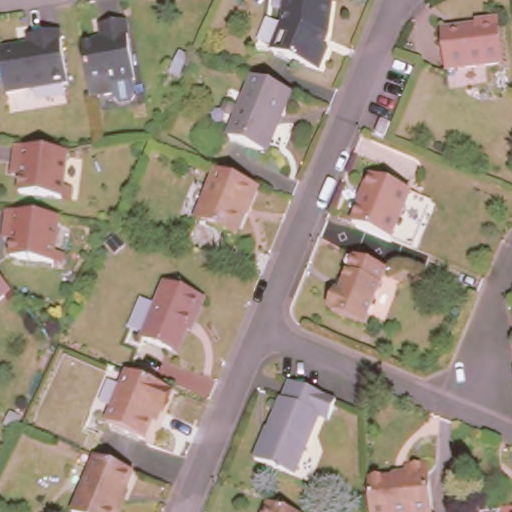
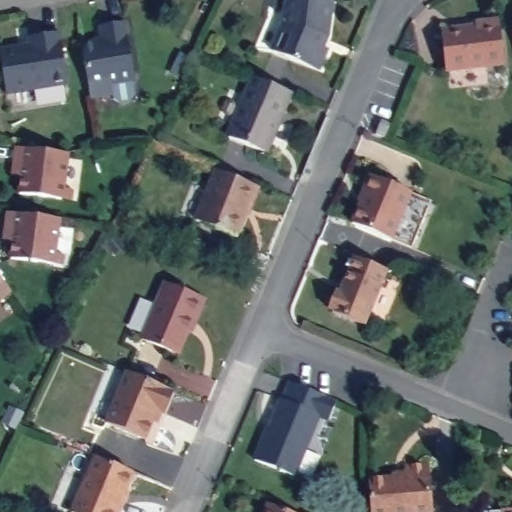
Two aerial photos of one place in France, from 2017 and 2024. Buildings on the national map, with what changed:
unchanged [(328,43),(331,44),(323,65),(277,46),(289,18),(290,0),(335,0),(331,31),(328,43)]
unchanged [(133,75),(110,79),(111,90),(90,93),(87,76),(81,39),(103,36),(100,21),(125,18),(133,75)]
unchanged [(483,26),(483,20),(502,19),(508,64),(453,70),(449,30),(483,26)]
unchanged [(5,89),(0,55),(0,46),(29,41),(28,33),(59,28),(68,79),(5,89)]
unchanged [(174,54),(185,59),(179,72),(168,67),(174,54)]
unchanged [(266,147),(229,131),(254,72),(291,86),(266,147)]
unchanged [(379,120),(389,124),(384,138),(373,134),(379,120)]
unchanged [(23,194),(25,178),(17,176),(19,164),(21,148),(73,154),(66,200),(23,194)]
unchanged [(236,237),(196,219),(218,169),(257,185),(236,237)]
unchanged [(379,174),(417,190),(397,239),(359,223),(379,174)]
unchanged [(7,238),(0,236),(0,227),(0,224),(3,208),(54,214),(48,260),(4,254),(7,238)]
unchanged [(393,270),(371,325),(339,312),(340,309),(335,308),(341,292),(347,294),(361,258),(393,270)]
unchanged [(0,295),(0,274),(10,288),(0,295)]
unchanged [(193,329),(184,352),(147,338),(170,283),(209,298),(201,319),(196,330),(193,329)]
unchanged [(166,389),(171,391),(163,410),(158,408),(145,438),(108,421),(128,371),(166,387),(166,389)]
unchanged [(271,424),(274,425),(286,397),(288,398),(294,380),(341,399),(334,418),(323,414),(299,473),(259,458),(266,441),(264,441),(271,424)]
unchanged [(123,501),(119,512),(77,512),(73,511),(96,454),(133,469),(125,491),(128,493),(123,501)]
unchanged [(405,476),(405,464),(428,463),(431,512),(371,512),(368,478),(405,476)]
unchanged [(269,501),(296,512),(264,512),(269,501)]

